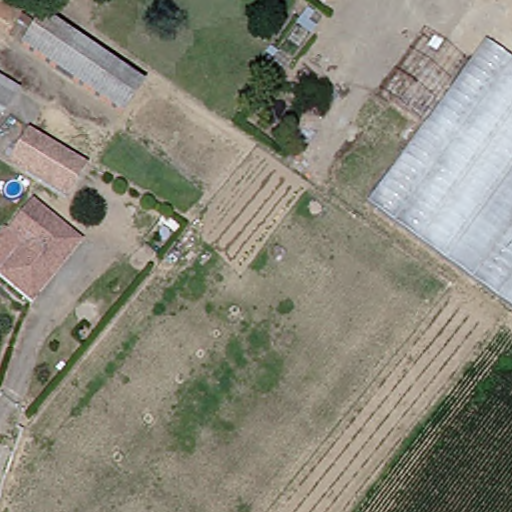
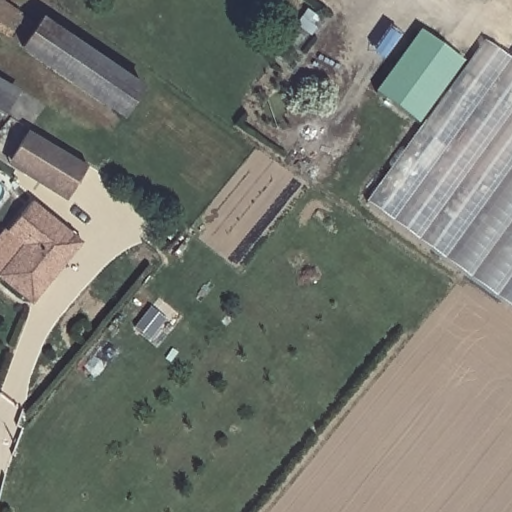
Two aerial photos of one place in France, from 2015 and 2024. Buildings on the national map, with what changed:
unchanged [(13,18),(2,32),(0,31),(0,8),(13,18)]
unchanged [(115,119),(11,42),(35,10),(138,87),(115,119)]
new [(457,57),(413,120),(376,92),(421,31),(457,57)]
unchanged [(501,56),(512,41),(512,309),(357,198),(472,36),(501,56)]
unchanged [(8,92),(0,106),(0,87),(8,92)]
unchanged [(87,166),(64,199),(23,172),(25,169),(9,158),(29,130),(87,166)]
unchanged [(21,200),(71,240),(22,300),(0,283),(0,227),(21,200)]

